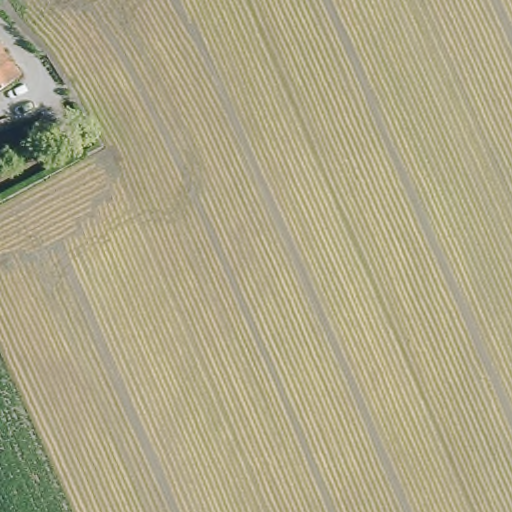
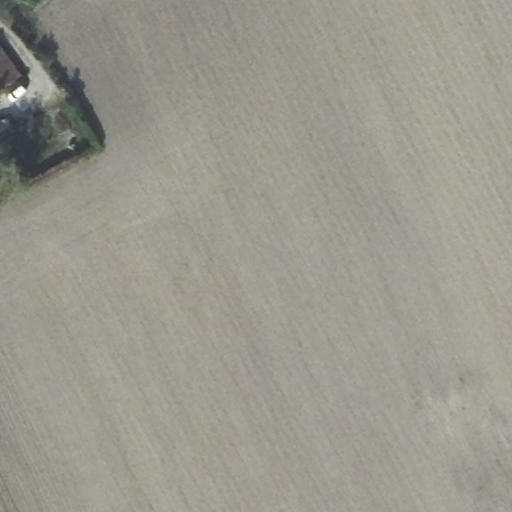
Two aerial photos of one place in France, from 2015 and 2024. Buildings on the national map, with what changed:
unchanged [(24,76),(0,93),(0,42),(24,76)]
unchanged [(14,128),(0,134),(0,122),(11,118),(14,128)]

